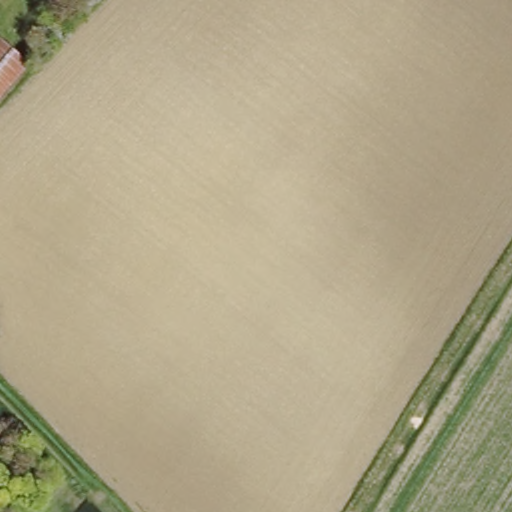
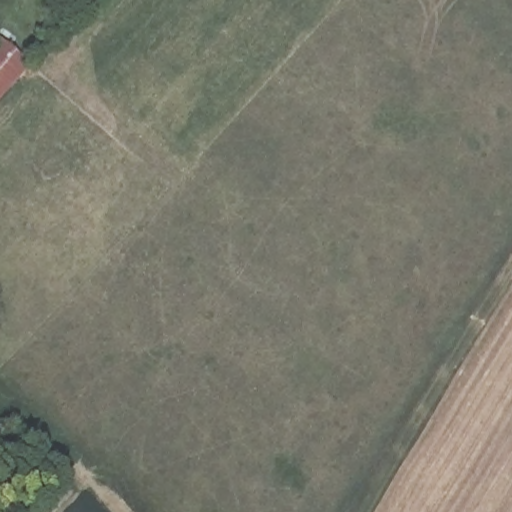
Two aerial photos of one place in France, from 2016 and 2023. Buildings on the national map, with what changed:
unchanged [(0,100),(0,38),(31,63),(0,100)]

